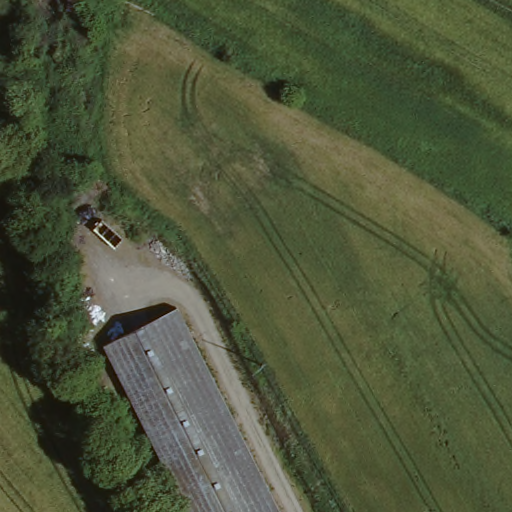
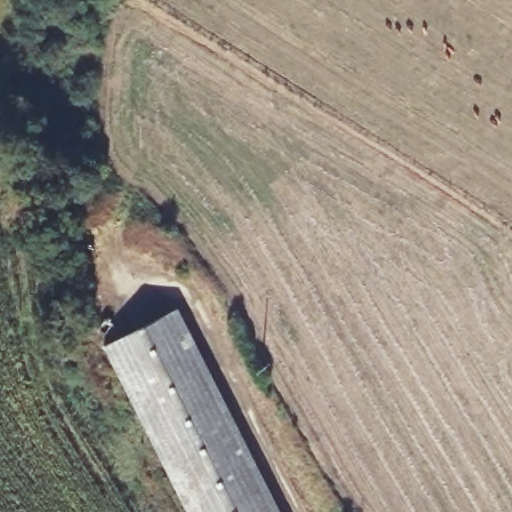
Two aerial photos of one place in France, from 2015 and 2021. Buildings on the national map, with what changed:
unchanged [(191,512),(105,348),(178,308),(285,512),(191,512)]

